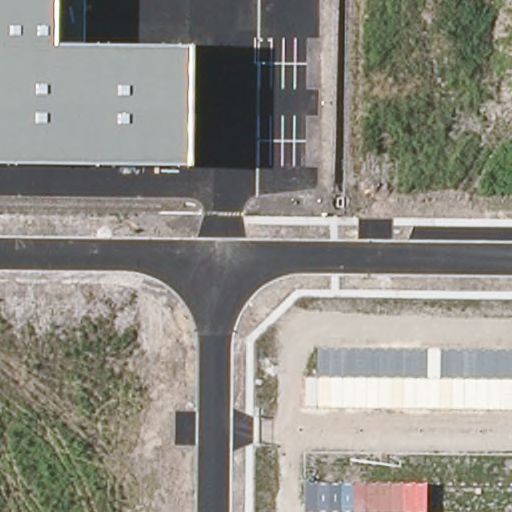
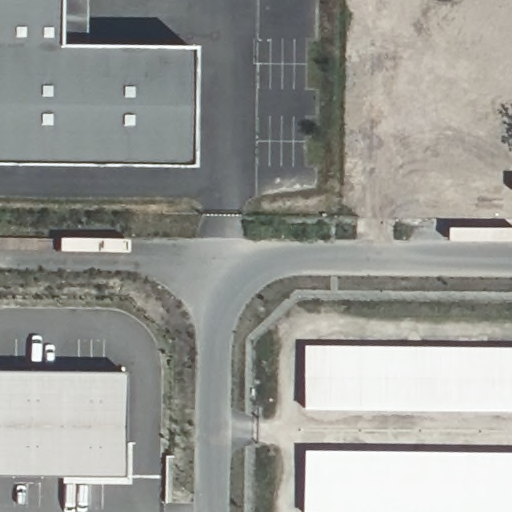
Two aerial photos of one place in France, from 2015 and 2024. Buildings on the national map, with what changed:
unchanged [(0,163),(0,0),(83,0),(82,45),(189,46),(188,164),(0,163)]
unchanged [(302,408),(303,348),(512,351),(512,409),(302,408)]
new [(123,480),(0,478),(0,373),(123,375),(123,480)]
new [(300,512),(301,452),(512,453),(512,512),(300,512)]

